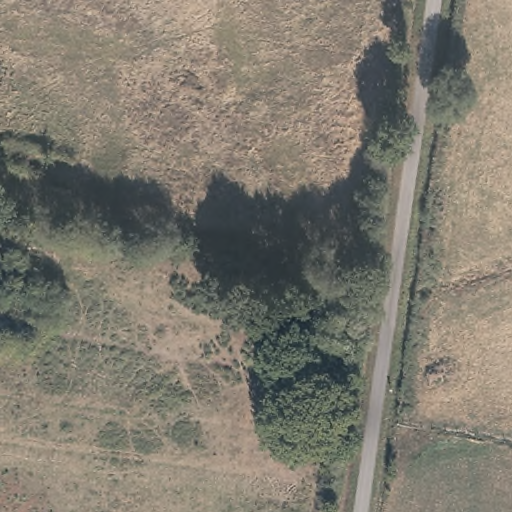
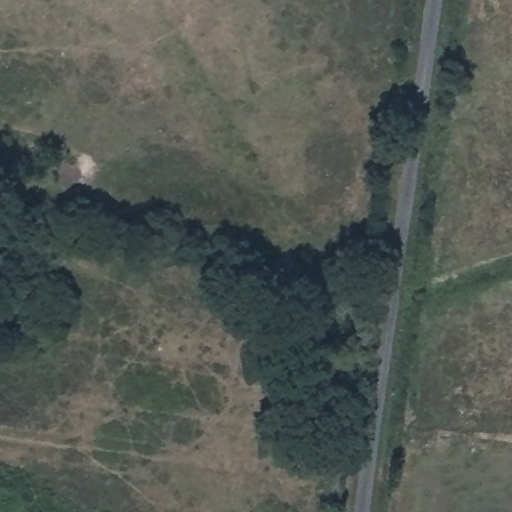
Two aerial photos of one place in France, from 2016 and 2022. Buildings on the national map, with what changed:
[]

